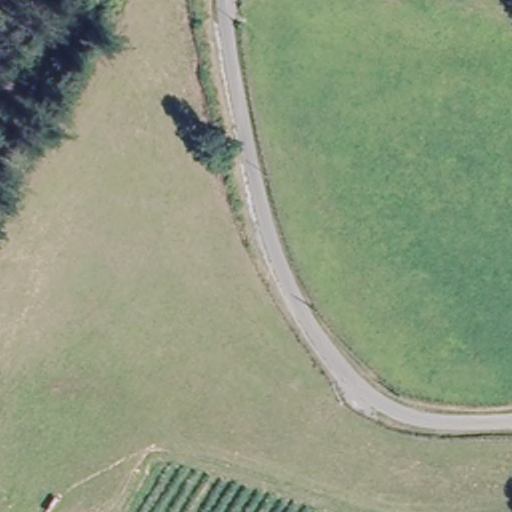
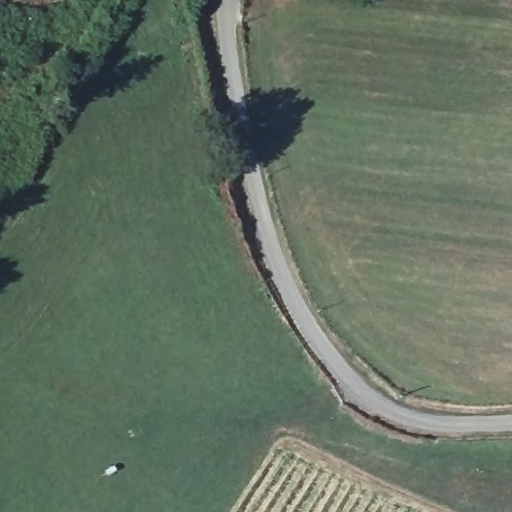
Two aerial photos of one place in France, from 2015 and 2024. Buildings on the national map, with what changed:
[]

